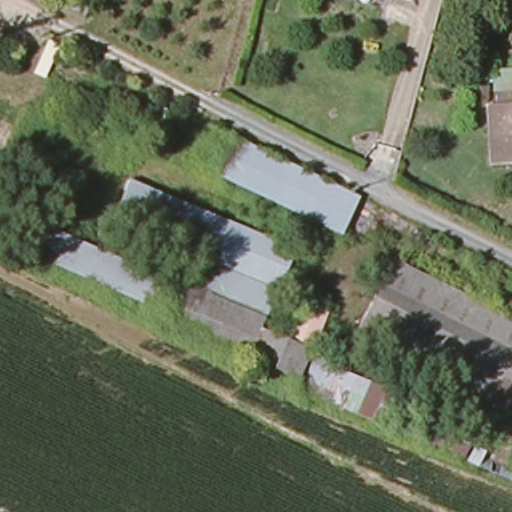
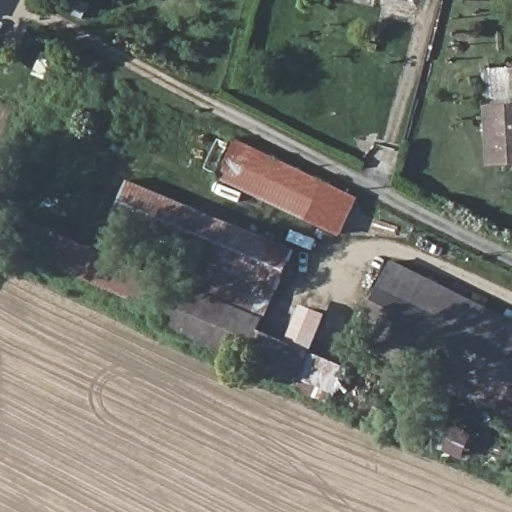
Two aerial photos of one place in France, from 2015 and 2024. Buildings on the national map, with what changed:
unchanged [(387,0),(413,0),(411,5),(387,0)]
unchanged [(512,166),(493,166),(489,110),(512,109),(512,166)]
unchanged [(342,240),(215,180),(236,140),(362,201),(342,240)]
unchanged [(184,255),(115,225),(128,192),(289,259),(275,293),(184,255)]
unchanged [(163,287),(150,313),(0,247),(0,214),(163,287)]
unchanged [(177,283),(173,281),(184,255),(275,293),(263,322),(177,283)]
unchanged [(397,265),(512,322),(512,415),(361,339),(397,265)]
unchanged [(260,328),(288,343),(315,355),(298,387),(157,323),(177,283),(263,322),(260,328)]
unchanged [(288,343),(305,305),(330,317),(315,355),(288,343)]
unchanged [(315,355),(345,369),(328,403),(298,387),(315,355)]
unchanged [(383,395),(369,422),(332,404),(343,378),(383,395)]
unchanged [(487,451),(478,471),(375,426),(385,406),(487,451)]

